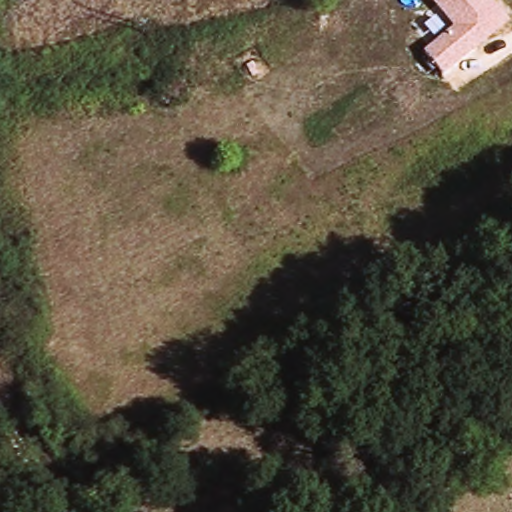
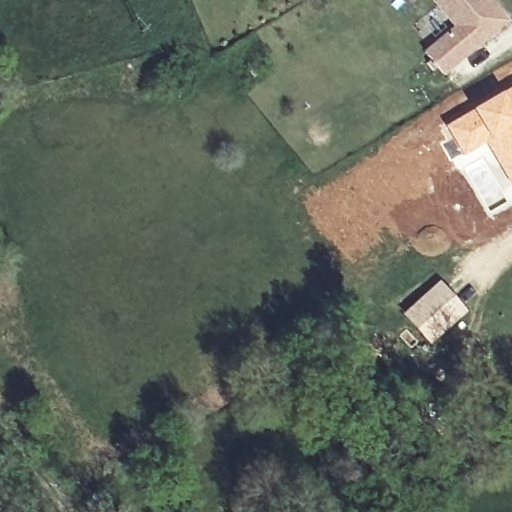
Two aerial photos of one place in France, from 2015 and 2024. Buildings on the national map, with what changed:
unchanged [(454,28),(431,0),(494,0),(512,21),(444,76),(424,52),(454,28)]
new [(512,87),(512,184),(486,142),(462,156),(445,125),(512,87)]
new [(432,346),(403,314),(440,280),(468,312),(432,346)]

